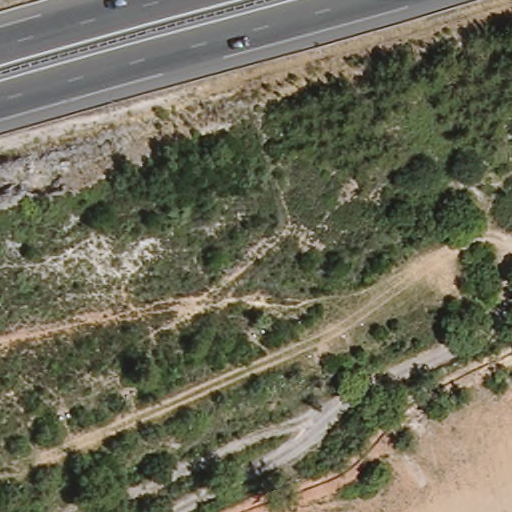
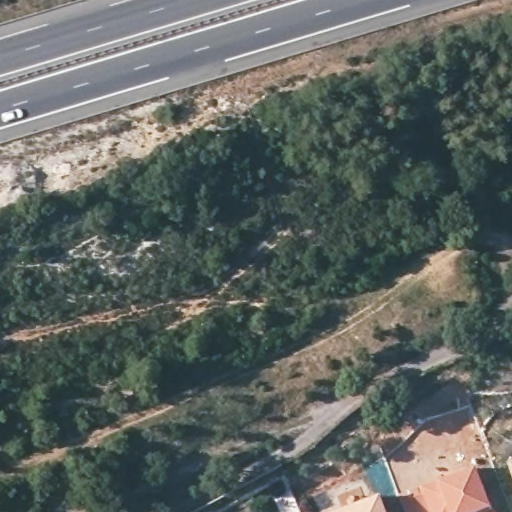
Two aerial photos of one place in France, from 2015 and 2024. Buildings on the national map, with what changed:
new [(512,463),(512,466),(511,463),(512,463)]
new [(432,512),(405,512),(398,494),(420,486),(438,480),(473,466),(488,507),(491,506),(493,512),(432,512)]
new [(384,512),(337,512),(378,497),(384,512)]

